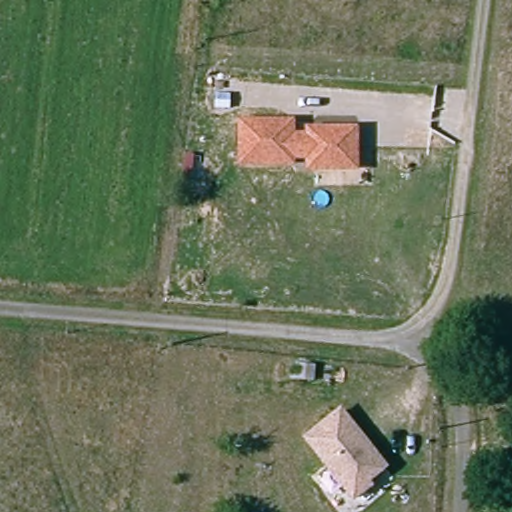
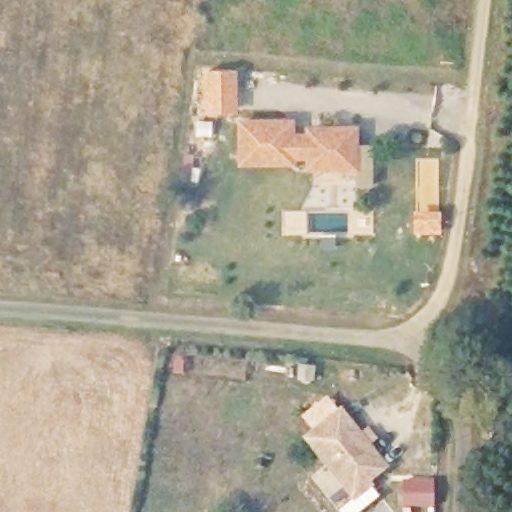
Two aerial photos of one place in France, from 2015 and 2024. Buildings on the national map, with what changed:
new [(237,71),(238,113),(206,114),(205,71),(237,71)]
unchanged [(295,117),(295,132),(305,132),(305,125),(359,125),(360,171),(305,172),(305,160),(295,160),(295,166),(239,168),(237,119),(295,117)]
unchanged [(376,478),(379,485),(357,503),(305,437),(341,407),(389,465),(376,478)]
unchanged [(381,499),(366,512),(343,512),(337,505),(350,495),(357,503),(374,490),(381,499)]

